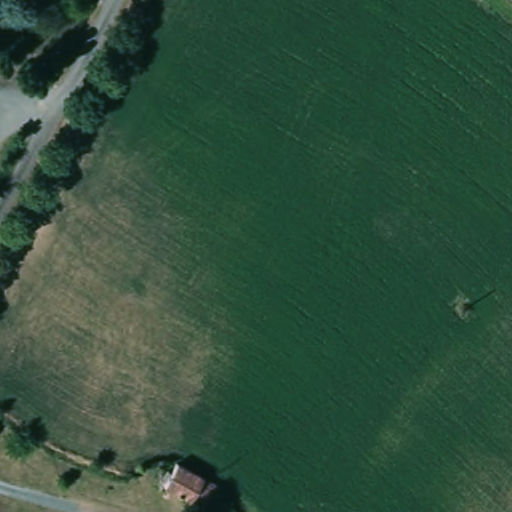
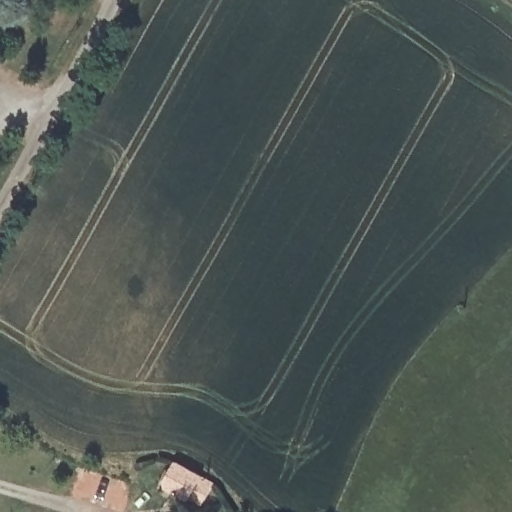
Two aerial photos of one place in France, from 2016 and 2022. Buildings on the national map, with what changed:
unchanged [(166,473),(167,472),(175,459),(180,450),(206,464),(203,472),(202,473),(202,474),(194,488),(188,486),(188,485),(177,480),(176,480),(166,474),(166,473)]

